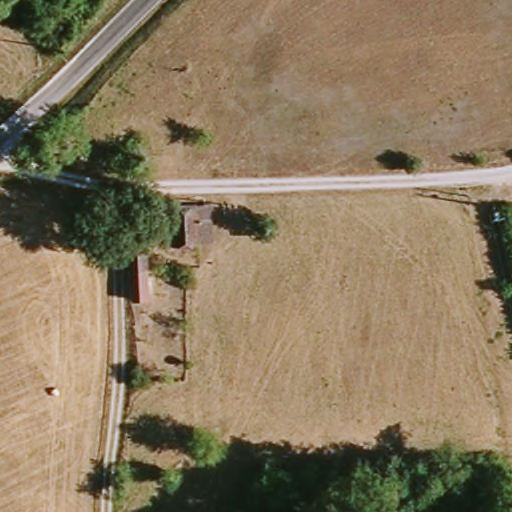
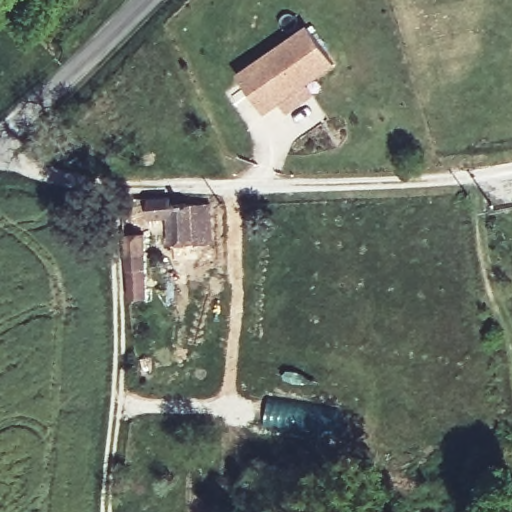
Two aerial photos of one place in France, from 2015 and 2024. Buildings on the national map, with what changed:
new [(336,65),(307,85),(315,95),(288,115),(280,104),(265,115),(237,75),(308,26),(336,65)]
unchanged [(169,242),(169,215),(149,215),(148,197),(148,196),(163,195),(162,198),(163,203),(209,202),(209,242),(169,242)]
unchanged [(141,224),(148,289),(127,292),(120,227),(141,224)]

